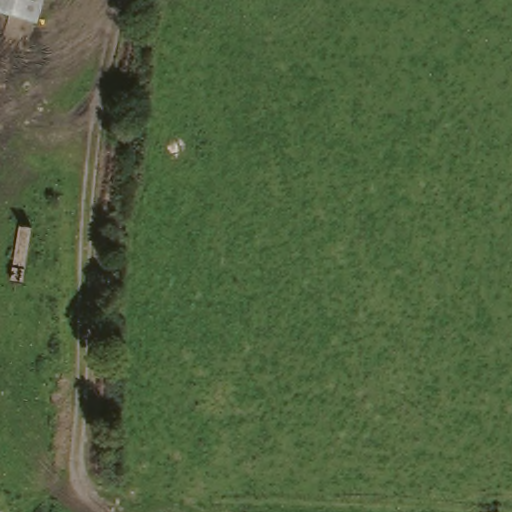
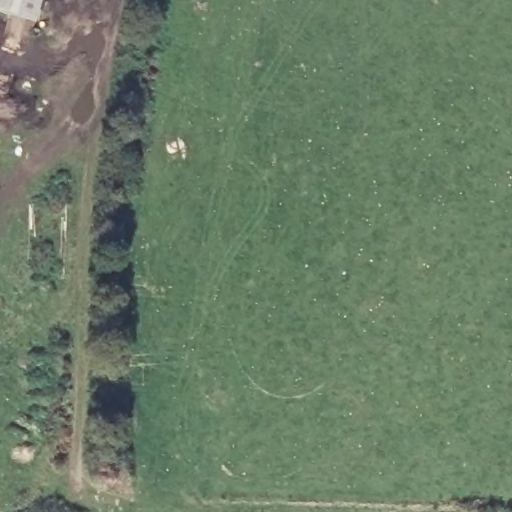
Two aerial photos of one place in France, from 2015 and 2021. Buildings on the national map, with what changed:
unchanged [(31,20),(0,11),(0,0),(37,0),(31,20)]

